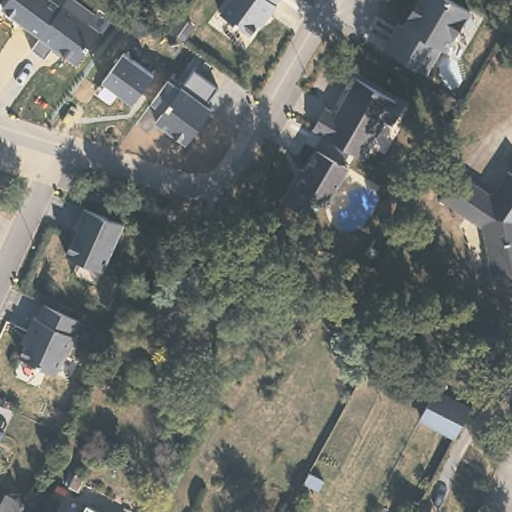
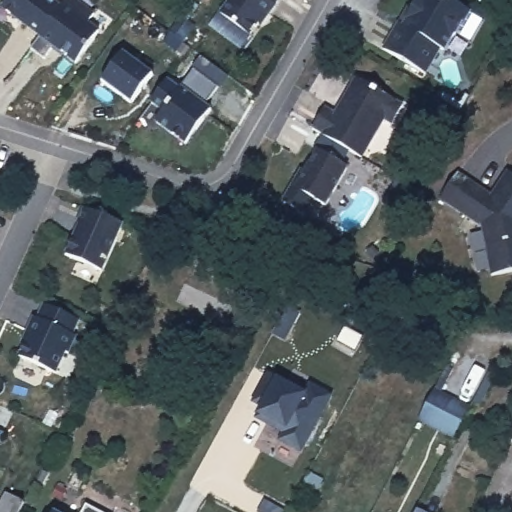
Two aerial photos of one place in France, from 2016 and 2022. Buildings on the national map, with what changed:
unchanged [(46,60),(33,50),(40,39),(2,11),(11,0),(49,0),(61,9),(67,0),(74,0),(96,16),(90,27),(99,34),(78,64),(55,50),(46,60)]
unchanged [(220,15),(230,0),(278,0),(274,5),(275,6),(265,20),(262,18),(249,36),(220,15)]
unchanged [(382,51),(406,10),(411,14),(419,0),(447,0),(469,12),(462,24),(457,26),(450,39),(446,37),(424,75),(382,51)]
unchanged [(105,81),(124,55),(154,74),(132,104),(105,81)]
unchanged [(205,103),(213,110),(188,148),(157,125),(162,116),(148,105),(170,79),(184,89),(196,72),(218,87),(205,103)]
unchanged [(325,110),(335,115),(355,80),(402,107),(391,126),(383,121),(361,160),(311,130),(325,110)]
unchanged [(296,179),(300,181),(317,150),(346,169),(325,205),(311,198),(303,213),(282,201),(296,179)]
unchanged [(492,272),(482,225),(440,196),(458,170),(492,192),(508,168),(512,171),(512,269),(492,272)]
unchanged [(102,272),(65,255),(77,226),(75,225),(82,210),(100,217),(123,226),(102,272)]
unchanged [(19,357),(28,336),(25,335),(34,317),(37,319),(44,305),(67,316),(79,321),(72,335),(75,337),(68,354),(65,353),(55,374),(19,357)]
new [(302,456),(278,443),(284,433),(255,417),(260,408),(251,403),(267,373),(278,380),(305,393),(310,383),(333,396),(302,456)]
unchanged [(463,412),(450,439),(415,421),(428,395),(463,412)]
unchanged [(322,480),(317,491),(302,482),(308,472),(322,480)]
unchanged [(0,512),(0,506),(6,494),(25,504),(20,512),(0,512)]
unchanged [(87,505),(100,512),(84,512),(85,511),(87,505)]
unchanged [(418,512),(414,512),(415,510),(418,512)]
unchanged [(289,512),(290,511),(292,512),(289,512)]

